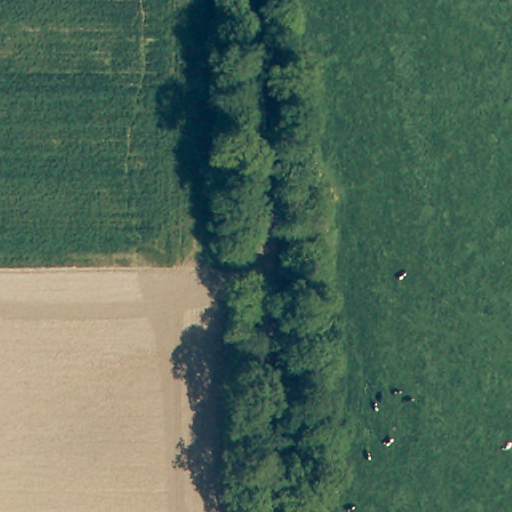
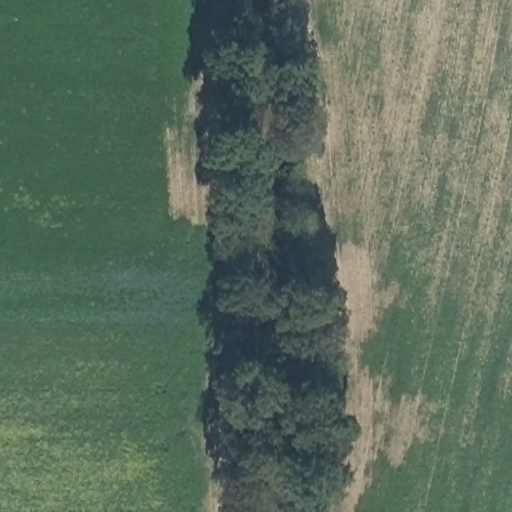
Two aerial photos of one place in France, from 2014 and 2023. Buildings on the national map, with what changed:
[]

